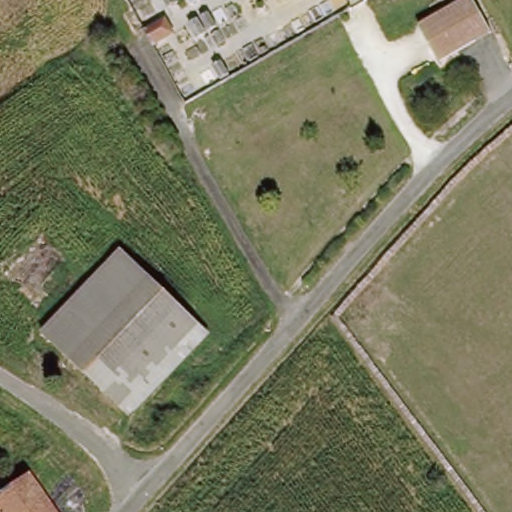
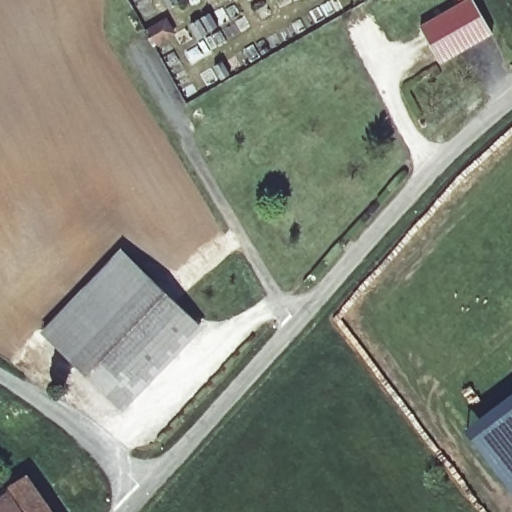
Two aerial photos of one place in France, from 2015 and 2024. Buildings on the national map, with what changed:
unchanged [(417,28),(464,0),(476,0),(492,30),(437,62),(417,28)]
unchanged [(46,333),(120,257),(179,316),(106,392),(46,333)]
unchanged [(197,334),(124,410),(106,392),(179,316),(197,334)]
new [(512,392),(512,497),(482,457),(463,430),(512,392)]
unchanged [(21,482),(32,488),(50,512),(16,512),(2,494),(21,482)]
unchanged [(16,512),(0,512),(0,495),(2,494),(16,512)]

